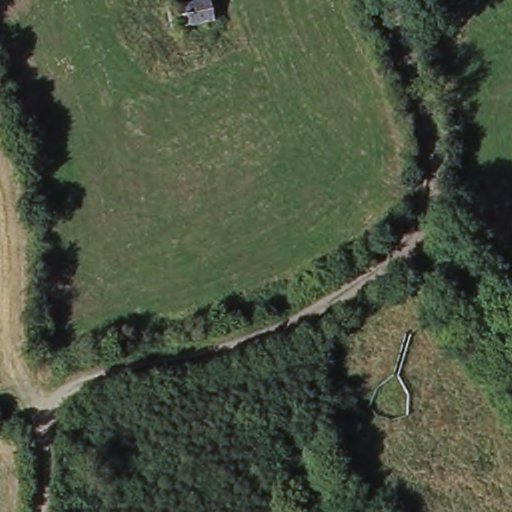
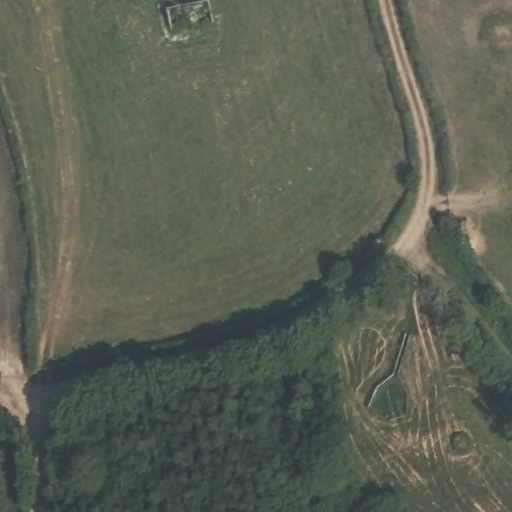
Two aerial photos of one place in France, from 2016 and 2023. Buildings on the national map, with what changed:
unchanged [(210,3),(216,26),(174,37),(169,14),(210,3)]

